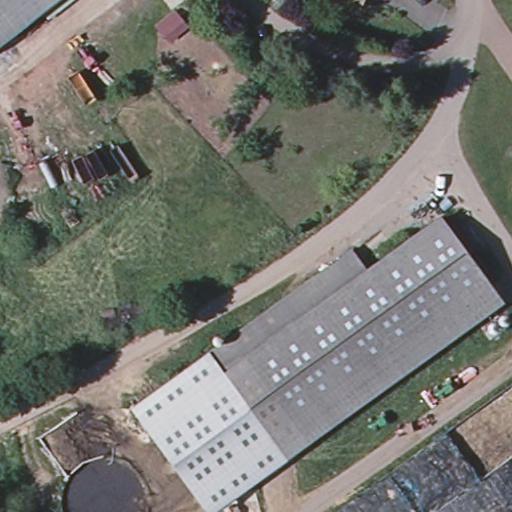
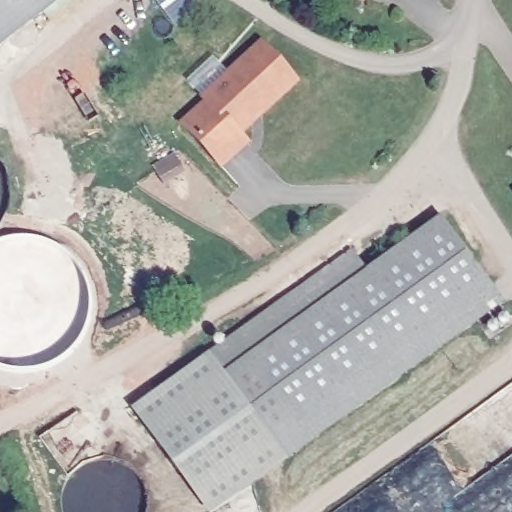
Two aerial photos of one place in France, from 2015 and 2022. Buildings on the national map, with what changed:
unchanged [(0,0),(71,0),(0,47),(0,0)]
new [(300,81),(242,135),(250,143),(220,169),(179,123),(203,101),(198,96),(261,39),(300,81)]
unchanged [(503,304),(219,512),(210,512),(132,411),(350,248),(367,270),(440,218),(503,304)]

